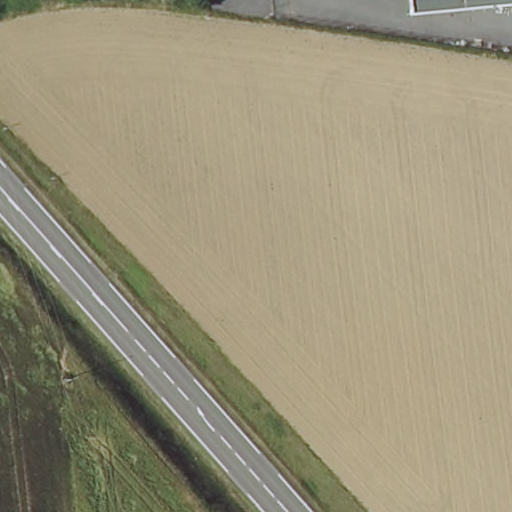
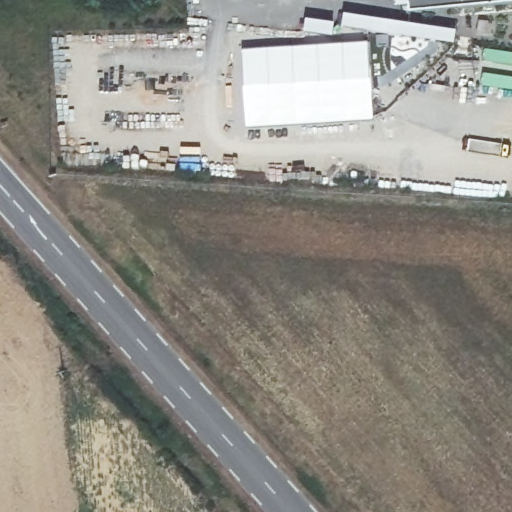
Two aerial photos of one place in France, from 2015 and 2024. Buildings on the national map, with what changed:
unchanged [(408,0),(512,0),(512,4),(410,14),(408,0)]
new [(343,13),(458,30),(456,45),(341,29),(343,13)]
new [(369,42),(375,120),(245,130),(240,49),(369,42)]

